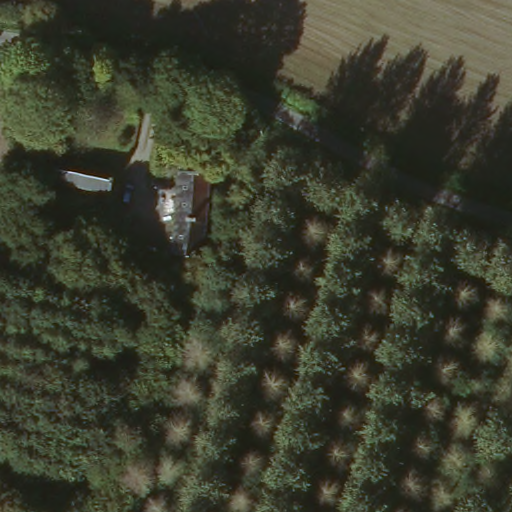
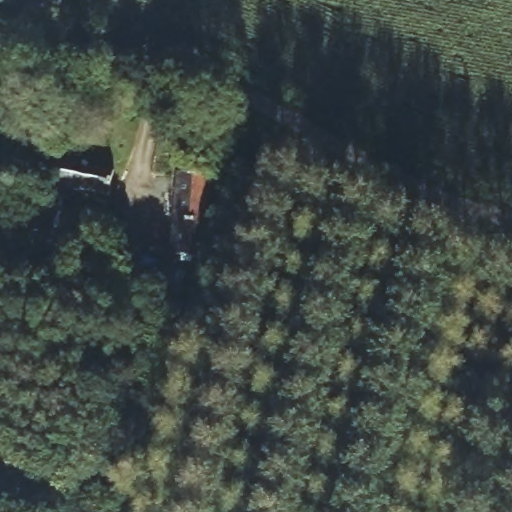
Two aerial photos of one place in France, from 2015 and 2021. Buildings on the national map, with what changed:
unchanged [(123,176),(119,202),(103,197),(31,183),(36,157),(123,176)]
unchanged [(179,169),(210,174),(204,260),(173,255),(173,254),(179,169)]

